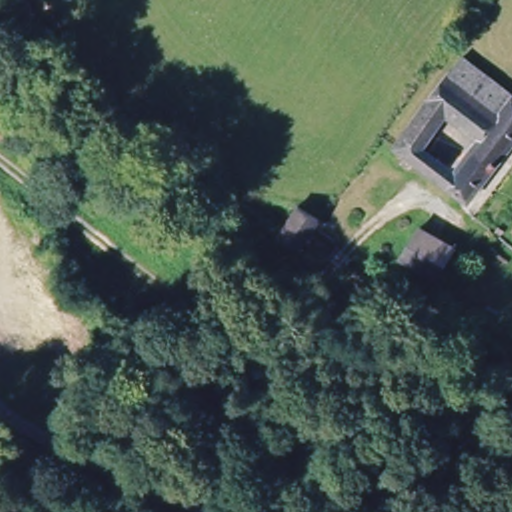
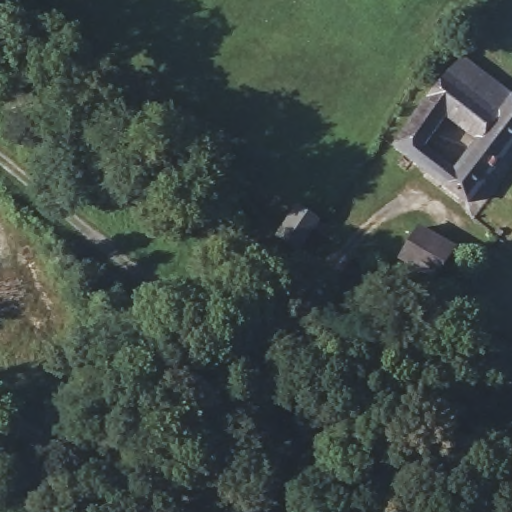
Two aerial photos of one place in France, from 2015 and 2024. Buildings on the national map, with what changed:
unchanged [(512,146),(463,209),(394,153),(440,85),(461,63),(512,105),(512,146)]
unchanged [(300,213),(321,228),(304,255),(281,240),(295,219),(300,213)]
unchanged [(435,279),(401,262),(415,233),(450,249),(435,279)]

